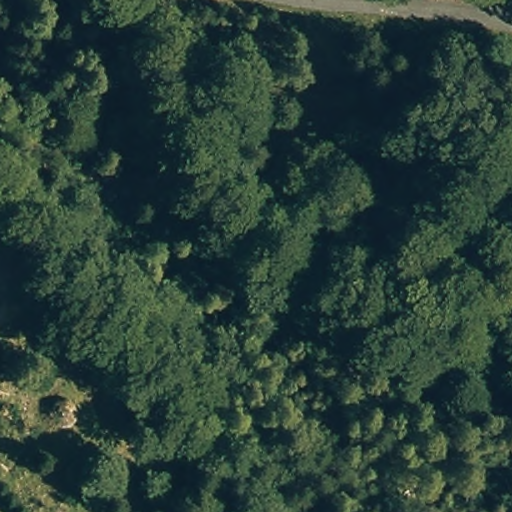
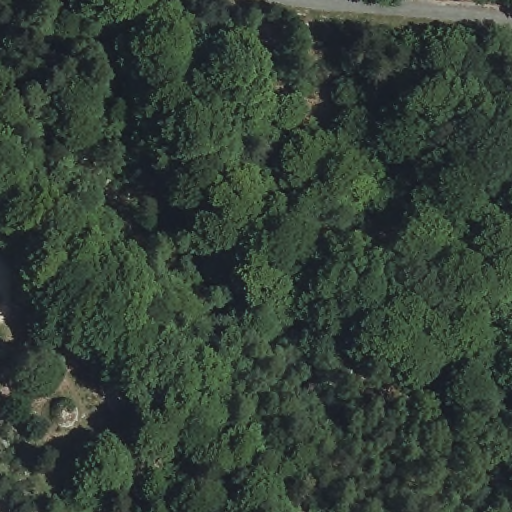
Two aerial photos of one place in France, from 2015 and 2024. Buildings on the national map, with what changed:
unchanged [(76,420),(75,423),(71,427),(66,428),(60,428),(54,424),(52,423),(50,417),(50,414),(52,408),(54,405),(58,402),(64,401),(69,402),(73,405),(76,409),(77,413),(76,420)]

